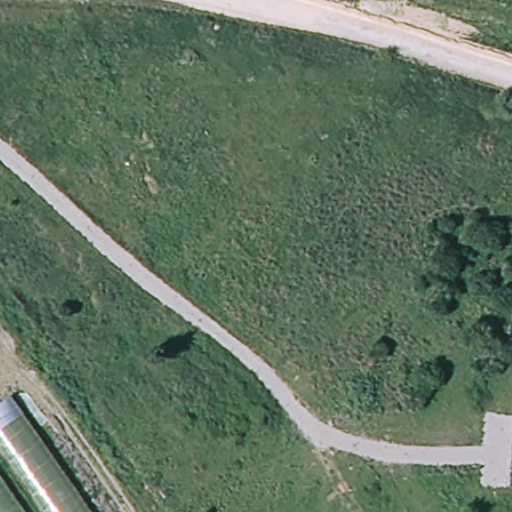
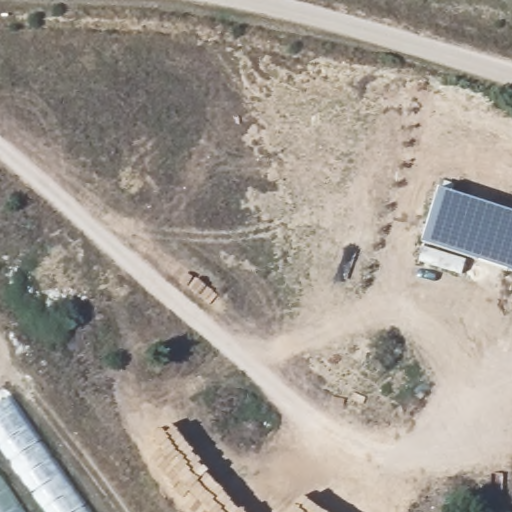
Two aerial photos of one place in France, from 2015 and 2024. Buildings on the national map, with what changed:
new [(512,273),(421,244),(437,189),(512,213),(512,273)]
unchanged [(99,512),(0,512),(0,406),(18,394),(99,512)]

